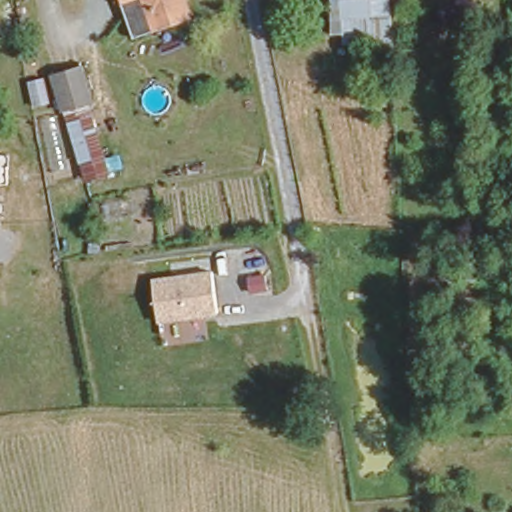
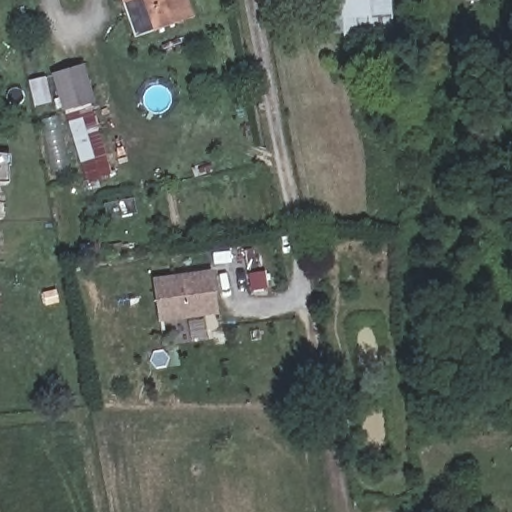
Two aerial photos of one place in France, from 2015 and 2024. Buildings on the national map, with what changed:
unchanged [(160,18),(152,0),(195,0),(196,3),(160,18)]
unchanged [(372,19),(350,20),(350,0),(372,0),(372,19)]
unchanged [(113,165),(80,178),(44,71),(80,57),(113,165)]
unchanged [(212,270),(219,315),(161,324),(154,278),(212,270)]

